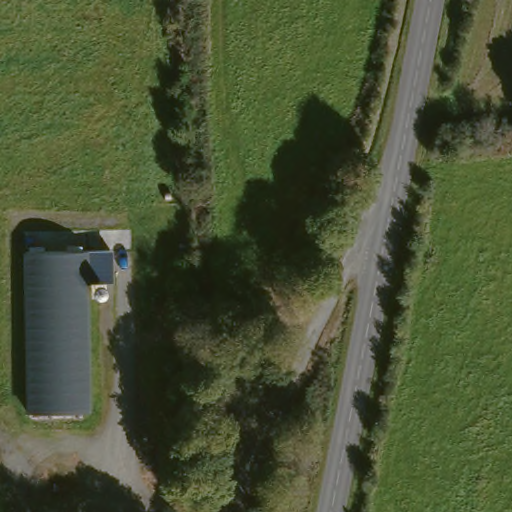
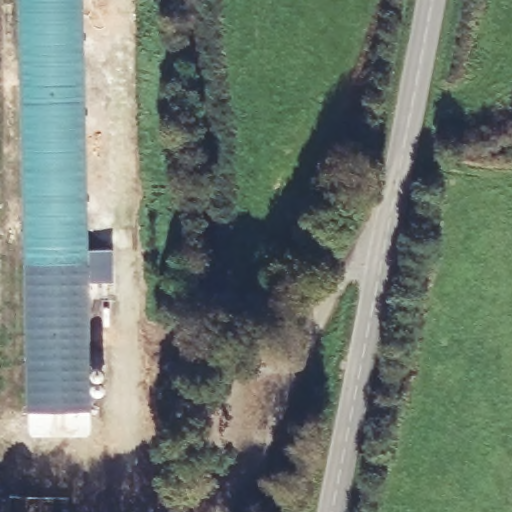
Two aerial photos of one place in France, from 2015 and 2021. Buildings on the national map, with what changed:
new [(21,251),(18,0),(82,0),(87,251),(21,251)]
unchanged [(112,251),(113,282),(89,282),(94,407),(26,409),(21,251),(112,251)]

